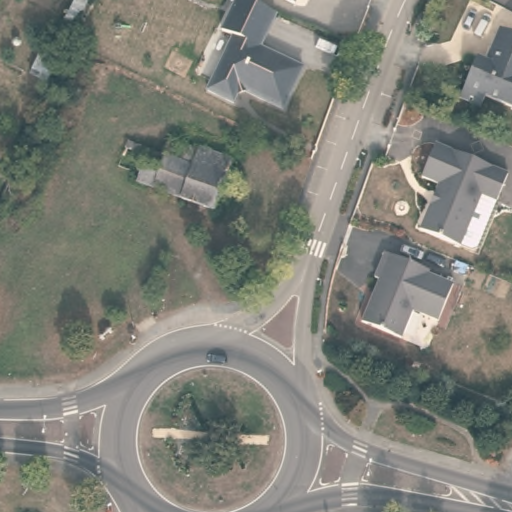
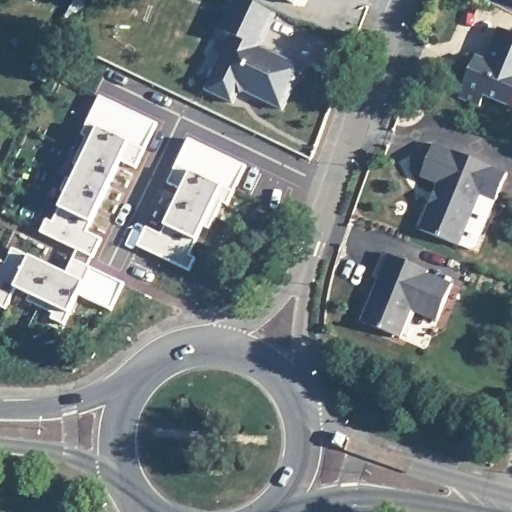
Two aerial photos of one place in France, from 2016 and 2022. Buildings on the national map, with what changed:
unchanged [(85,0),(88,2),(76,25),(64,19),(75,0),(85,0)]
unchanged [(276,13),(260,46),(303,67),(283,109),(245,90),(238,93),(233,102),(207,89),(233,35),(222,29),(236,0),(248,0),(260,6),(276,13)]
unchanged [(288,0),(296,0),(294,4),(288,0)]
unchanged [(512,106),(485,95),(481,105),(460,96),(477,56),(486,60),(492,46),(500,27),(512,32),(512,106)]
unchanged [(46,38),(64,46),(47,84),(29,75),(46,38)]
new [(52,219),(57,223),(71,194),(65,191),(71,179),(77,181),(84,168),(78,164),(90,138),(86,136),(104,98),(160,124),(139,169),(125,161),(91,232),(106,239),(97,257),(46,233),(52,219)]
new [(248,166),(230,204),(225,202),(212,229),(206,226),(193,254),(198,258),(192,270),(141,245),(150,227),(165,234),(186,190),(171,183),(192,139),(248,166)]
unchanged [(429,205),(435,204),(437,195),(435,190),(438,184),(421,177),(436,143),(508,173),(497,202),(481,195),(460,245),(420,229),(429,205)]
demolished [(128,145),(165,159),(171,145),(205,156),(206,154),(233,164),(214,215),(137,187),(144,169),(122,160),(128,145)]
new [(1,259),(11,263),(18,249),(71,274),(78,259),(128,283),(115,309),(83,294),(69,324),(56,318),(58,313),(32,300),(35,294),(21,288),(11,309),(0,303),(0,301),(2,297),(0,296),(0,262),(1,259)]
unchanged [(370,300),(375,298),(376,293),(374,292),(379,279),(375,277),(385,253),(429,271),(428,274),(454,284),(438,321),(413,310),(402,338),(361,321),(370,300)]

